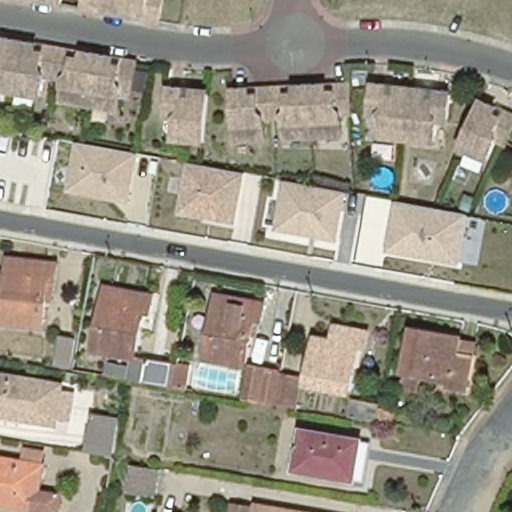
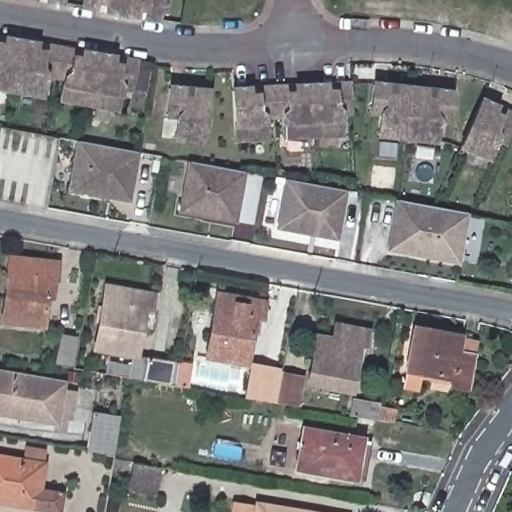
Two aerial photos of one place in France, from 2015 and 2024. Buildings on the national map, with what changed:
unchanged [(49,0),(60,0),(60,1),(49,0)]
unchanged [(96,8),(79,5),(78,5),(79,0),(160,0),(156,19),(141,16),(133,15),(104,10),(96,8)]
unchanged [(40,41),(45,41),(73,46),(79,47),(80,47),(95,50),(111,54),(119,55),(133,57),(129,86),(119,84),(115,106),(58,95),(61,74),(41,71),(37,91),(0,84),(0,34),(1,35),(28,39),(33,40),(40,41)]
unchanged [(339,136),(282,137),(281,116),(263,116),(263,138),(233,138),(231,88),(236,88),(246,88),(253,88),(272,87),(284,86),(291,86),(310,86),(323,86),(331,85),(347,85),(348,113),(338,113),(339,136)]
unchanged [(432,91),(448,94),(445,121),(434,121),(433,141),(375,135),(377,115),(368,114),(370,85),(385,86),(393,88),(424,91),(432,91)]
unchanged [(200,143),(170,140),(172,116),(161,116),(166,88),(180,90),(188,91),(206,91),(200,143)]
unchanged [(505,144),(497,141),(487,160),(459,148),(481,101),(493,108),(502,111),(512,116),(512,128),(505,144)]
unchanged [(141,153),(132,204),(67,192),(76,141),(141,153)]
unchanged [(247,173),(238,225),(178,214),(187,161),(247,173)]
unchanged [(349,192),(340,243),(276,231),(285,180),(349,192)]
unchanged [(470,215),(461,264),(388,252),(396,201),(470,215)]
unchanged [(58,266),(54,285),(51,285),(43,331),(2,325),(12,259),(58,266)]
unchanged [(151,296),(149,313),(142,311),(134,357),(95,349),(106,288),(151,296)]
unchanged [(263,303),(260,320),(254,320),(245,364),(205,357),(217,294),(263,303)]
unchanged [(334,340),(338,324),(367,331),(363,347),(357,345),(347,404),(305,396),(317,336),(334,340)]
unchanged [(416,393),(401,391),(405,371),(413,329),(459,337),(475,340),(471,359),(466,389),(449,387),(418,381),(416,393)]
unchanged [(63,339),(76,342),(71,369),(59,367),(63,339)]
unchanged [(132,366),(134,357),(181,366),(184,356),(194,358),(189,391),(105,376),(107,363),(132,366)]
unchanged [(298,409),(276,405),(260,402),(246,400),(252,366),(266,370),(282,372),(303,377),(298,409)]
unchanged [(56,420),(0,410),(0,374),(61,387),(56,420)]
unchanged [(366,420),(361,419),(363,401),(369,403),(379,404),(378,412),(386,414),(385,424),(376,422),(366,420)]
unchanged [(118,419),(111,454),(88,450),(93,415),(118,419)]
unchanged [(359,442),(353,480),(293,470),(301,430),(359,442)]
unchanged [(31,505),(0,499),(0,454),(39,461),(31,505)]
unchanged [(156,494),(128,488),(132,464),(161,469),(156,494)]
unchanged [(253,512),(234,512),(235,505),(254,509),(253,512)]
unchanged [(293,512),(255,512),(256,506),(293,512)]

